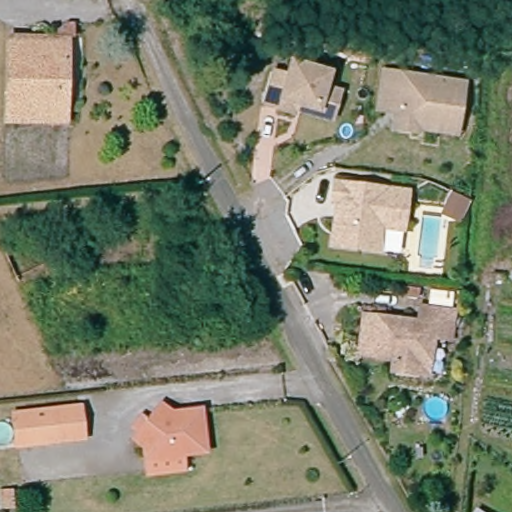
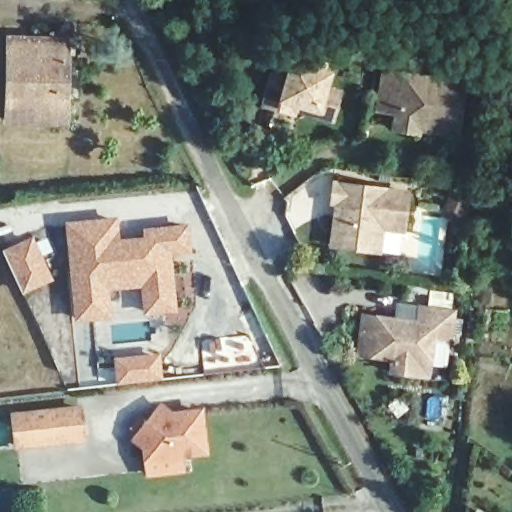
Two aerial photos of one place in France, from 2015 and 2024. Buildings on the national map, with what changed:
unchanged [(9,118),(9,40),(66,37),(66,61),(67,87),(68,115),(9,118)]
unchanged [(334,116),(297,109),(296,113),(264,106),(270,74),(288,77),(291,64),(328,71),(325,85),(339,89),(334,116)]
unchanged [(381,107),(387,70),(466,82),(459,120),(428,115),(427,127),(420,126),(419,130),(396,127),(398,110),(381,107)]
unchanged [(371,249),(333,244),(337,215),(338,201),(333,200),(336,181),(409,191),(404,229),(383,226),(380,250),(371,249)]
new [(69,224),(115,219),(117,241),(132,240),(146,239),(145,230),(186,226),(189,249),(160,251),(163,270),(170,270),(174,308),(146,310),(144,282),(105,286),(109,314),(78,317),(74,283),(73,266),(69,224)]
new [(32,239),(50,277),(22,290),(5,252),(32,239)]
unchanged [(385,366),(386,360),(359,358),(361,313),(415,316),(417,305),(451,310),(449,342),(432,340),(427,387),(408,384),(383,380),(385,366)]
new [(256,310),(267,333),(250,341),(239,318),(256,310)]
new [(159,355),(161,378),(122,382),(119,359),(159,355)]
unchanged [(79,405),(85,434),(23,443),(18,411),(79,405)]
unchanged [(144,458),(120,440),(125,433),(115,421),(124,411),(136,418),(146,405),(160,415),(192,411),(194,451),(177,453),(163,472),(144,458)]
new [(481,504),(493,512),(476,512),(481,504)]

